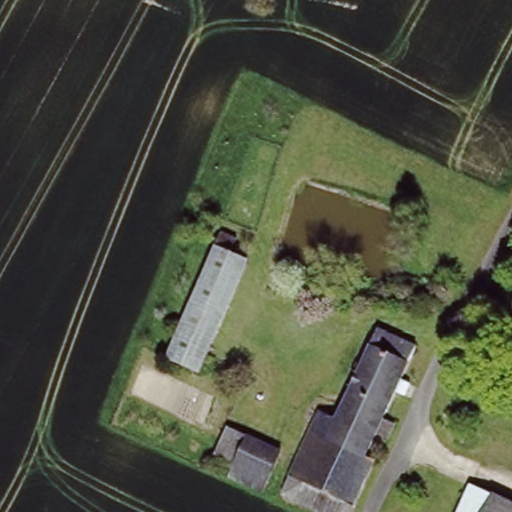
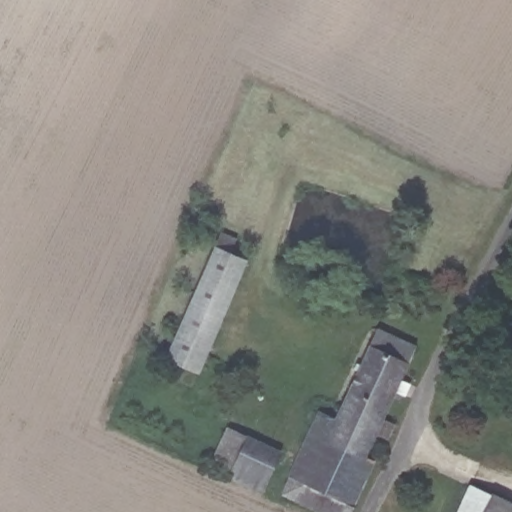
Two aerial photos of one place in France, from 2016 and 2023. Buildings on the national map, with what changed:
unchanged [(237,249),(232,262),(245,267),(199,379),(166,366),(219,242),(237,249)]
unchanged [(319,428),(330,434),(379,344),(415,362),(399,393),(410,399),(403,411),(392,406),(378,434),(387,439),(380,453),(371,449),(360,471),(309,447),(319,428)]
unchanged [(278,456),(258,498),(223,481),(228,470),(211,462),(226,431),(278,456)]
unchanged [(360,471),(368,474),(349,512),(301,512),(280,502),(309,447),(360,471)]
unchanged [(512,512),(458,512),(472,484),(512,507),(512,512)]

